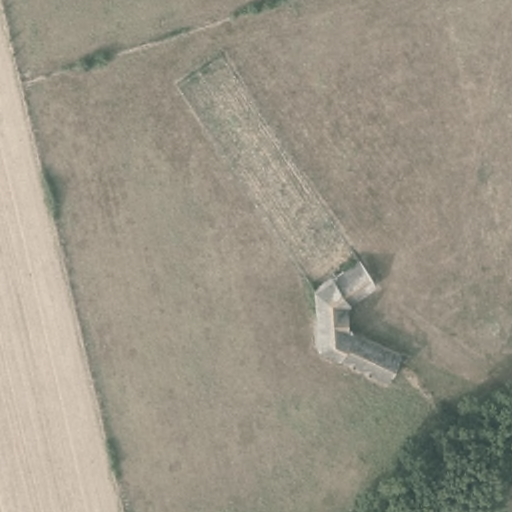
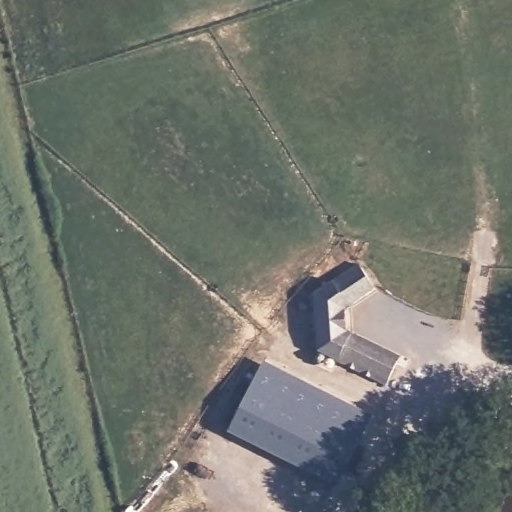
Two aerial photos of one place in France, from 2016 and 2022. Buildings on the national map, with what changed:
unchanged [(391,389),(315,350),(312,293),(334,285),(361,263),(380,296),(354,311),(356,333),(404,355),(391,389)]
new [(265,360),(372,413),(338,486),(229,432),(265,360)]

